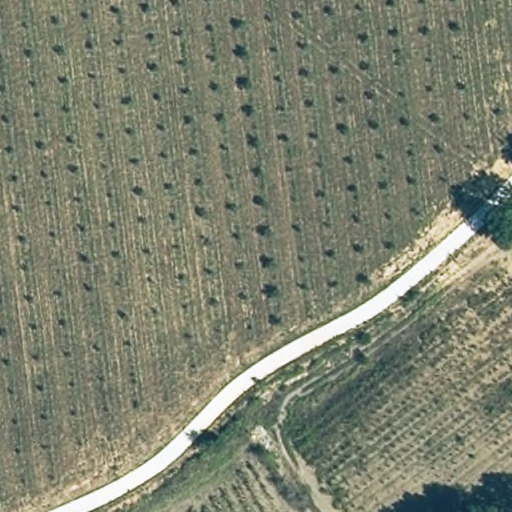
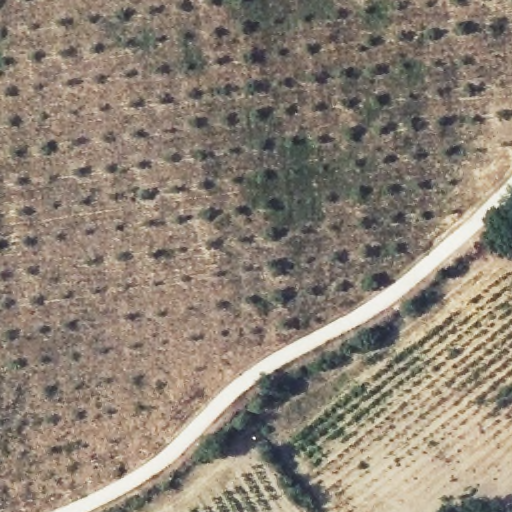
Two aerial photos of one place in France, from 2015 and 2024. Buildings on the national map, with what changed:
[]

